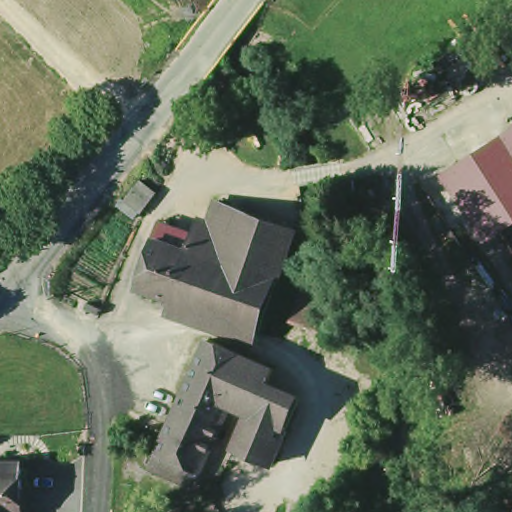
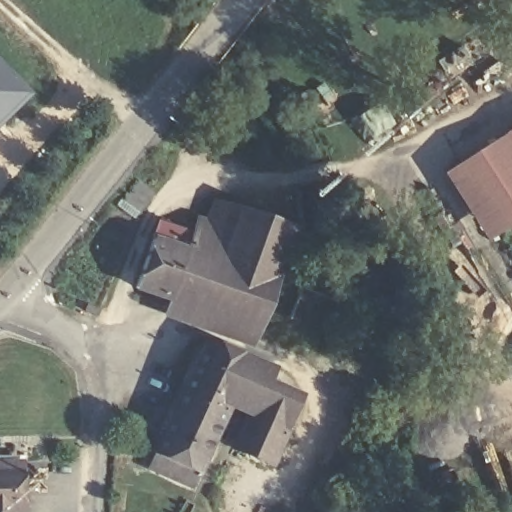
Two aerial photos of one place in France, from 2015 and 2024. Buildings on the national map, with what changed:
new [(27,94),(0,122),(0,67),(27,94)]
unchanged [(512,138),(512,151),(506,142),(512,138)]
unchanged [(512,151),(512,226),(497,236),(458,172),(506,142),(512,151)]
unchanged [(139,183),(147,187),(154,193),(139,212),(125,202),(139,183)]
unchanged [(154,230),(189,241),(191,226),(206,232),(215,201),(300,231),(274,297),(254,351),(282,365),(274,382),(303,394),(272,463),(232,448),(249,409),(232,403),(212,450),(208,478),(190,493),(147,472),(155,452),(210,335),(163,320),(169,301),(137,287),(154,230)]
unchanged [(295,320),(308,287),(352,306),(338,338),(295,320)]
unchanged [(20,468),(21,512),(0,512),(0,468),(20,468)]

